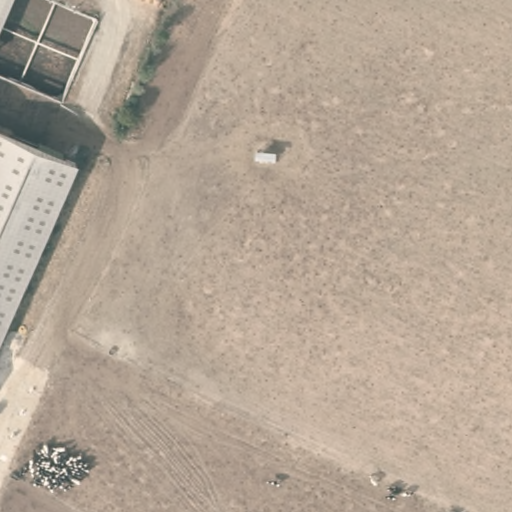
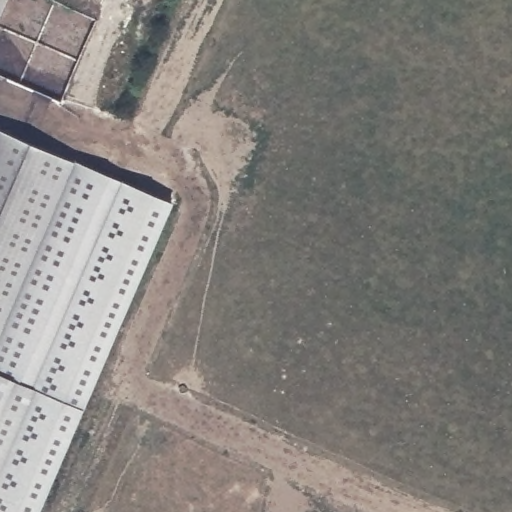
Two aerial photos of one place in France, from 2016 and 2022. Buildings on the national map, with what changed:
unchanged [(0,11),(0,0),(5,0),(0,11)]
unchanged [(0,305),(0,125),(65,153),(0,305)]
new [(172,203),(39,512),(0,512),(0,305),(64,157),(172,203)]

